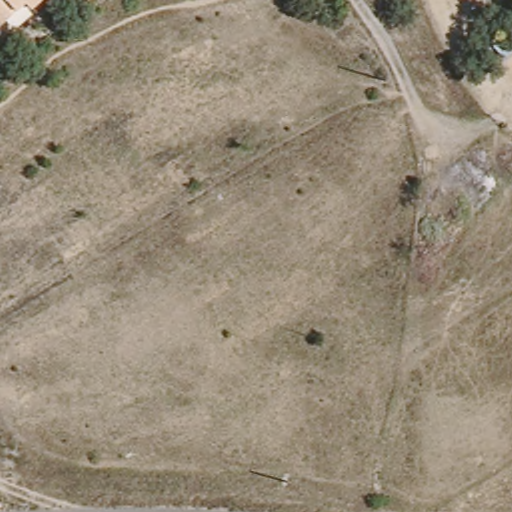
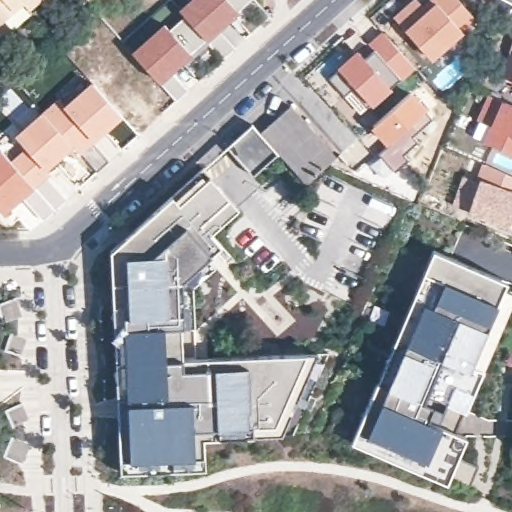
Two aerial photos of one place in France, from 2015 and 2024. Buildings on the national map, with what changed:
unchanged [(32,9),(26,2),(4,22),(0,25),(0,0),(41,0),(32,9)]
unchanged [(87,1),(86,2),(84,0),(88,0),(87,1)]
new [(190,0),(249,0),(221,27),(236,46),(224,59),(179,10),(190,0)]
new [(416,0),(417,0),(424,7),(432,0),(459,0),(475,18),(431,58),(395,19),(416,0)]
new [(504,0),(512,0),(512,4),(504,0)]
new [(179,10),(207,40),(173,71),(188,88),(176,98),(160,83),(132,50),(179,10)]
new [(360,52),(366,58),(375,50),(371,45),(385,34),(415,66),(368,108),(352,90),(346,96),(330,79),(360,52)]
new [(510,53),(512,46),(512,53),(510,53)]
new [(511,83),(512,80),(512,83),(511,83)]
new [(10,209),(3,215),(0,211),(0,148),(10,158),(23,146),(14,135),(20,129),(36,115),(55,100),(61,106),(92,81),(122,115),(105,134),(82,157),(73,148),(48,171),(52,176),(21,200),(10,209)]
new [(491,96),(512,105),(512,154),(486,143),(493,127),(480,121),(491,96)]
new [(253,125),(259,131),(291,106),(336,156),(304,184),(278,154),(252,176),(227,147),(253,125)]
new [(469,211),(481,180),(485,165),(512,176),(512,213),(507,229),(469,211)]
new [(111,251),(172,196),(180,204),(209,176),(238,209),(210,235),(221,246),(209,257),(215,265),(192,285),(194,326),(182,327),(183,359),(316,350),(280,433),(204,438),(205,468),(121,472),(111,251)]
new [(434,251),(506,281),(505,287),(512,290),(512,303),(467,410),(447,401),(437,423),(466,436),(447,482),(353,441),(434,251)]

